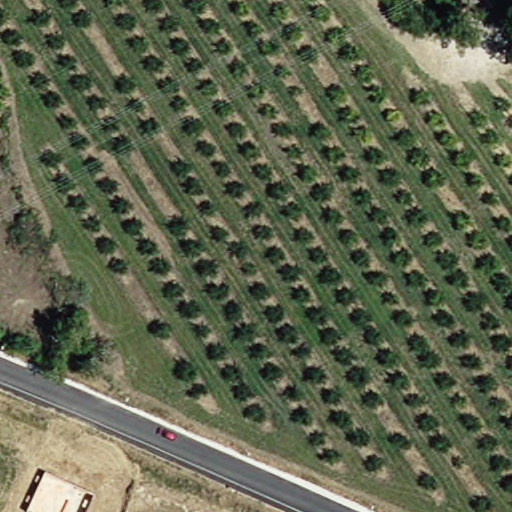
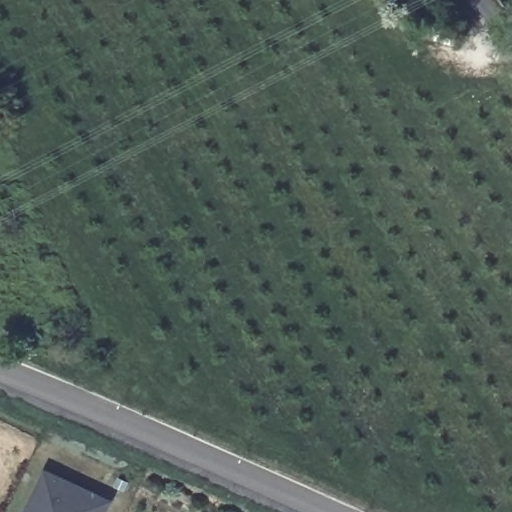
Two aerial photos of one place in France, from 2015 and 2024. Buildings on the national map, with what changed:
new [(28,512),(25,511),(43,472),(95,495),(87,512),(28,512)]

